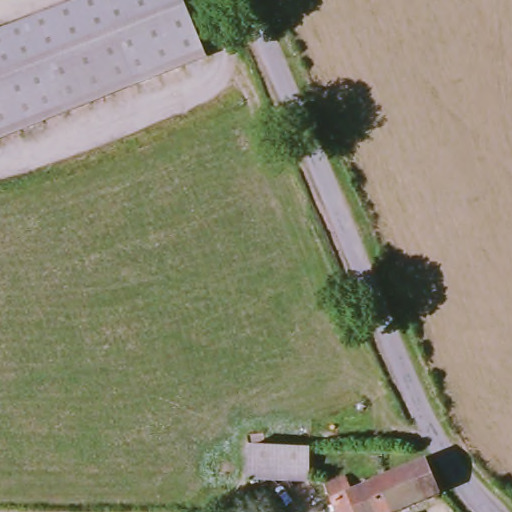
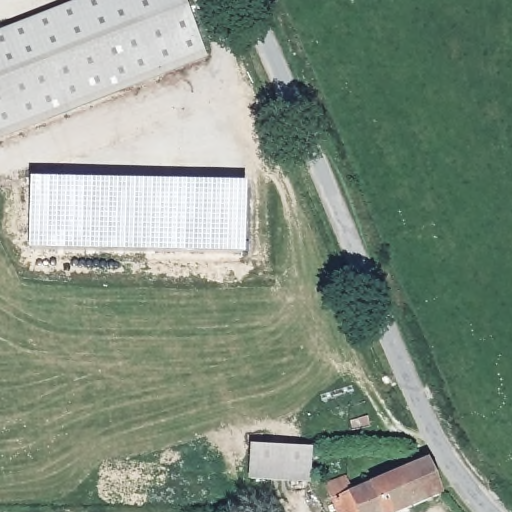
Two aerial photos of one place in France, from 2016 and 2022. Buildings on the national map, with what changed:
unchanged [(183,0),(207,55),(0,141),(0,35),(85,0),(183,0)]
new [(246,179),(245,250),(29,247),(31,175),(246,179)]
unchanged [(255,486),(253,454),(279,454),(312,455),(312,486),(269,486),(255,486)]
unchanged [(410,512),(339,512),(332,498),(352,485),(361,500),(380,488),(429,457),(446,491),(410,512)]

